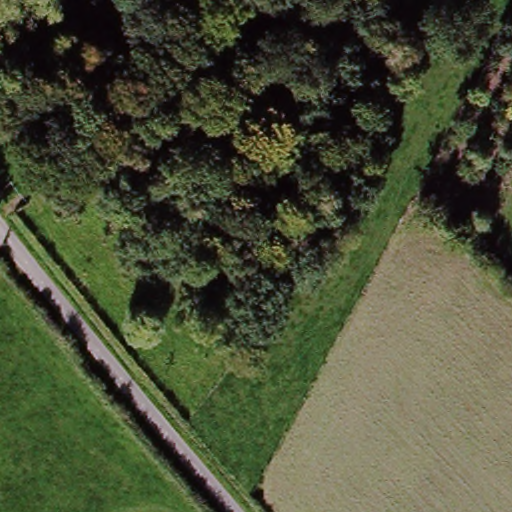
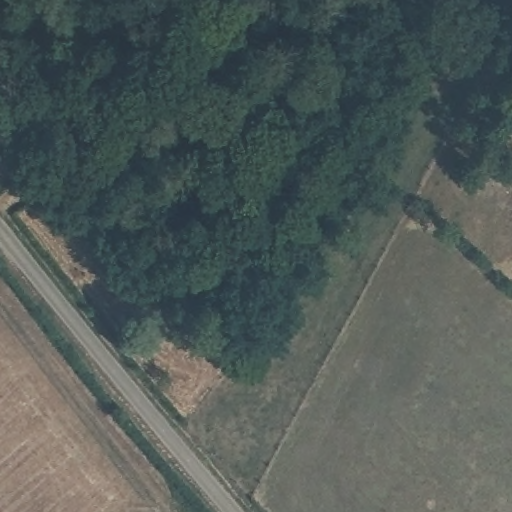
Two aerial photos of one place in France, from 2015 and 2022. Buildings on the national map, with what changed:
[]

